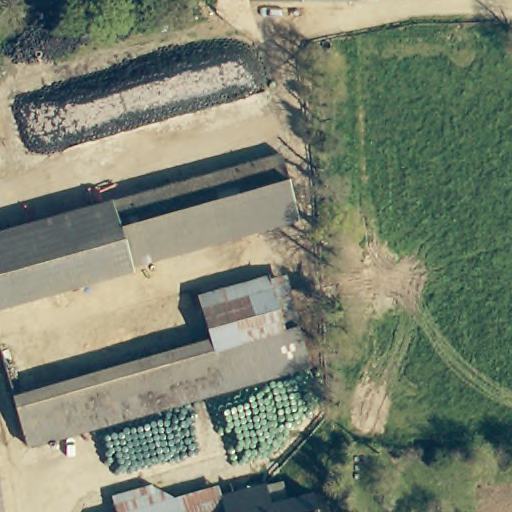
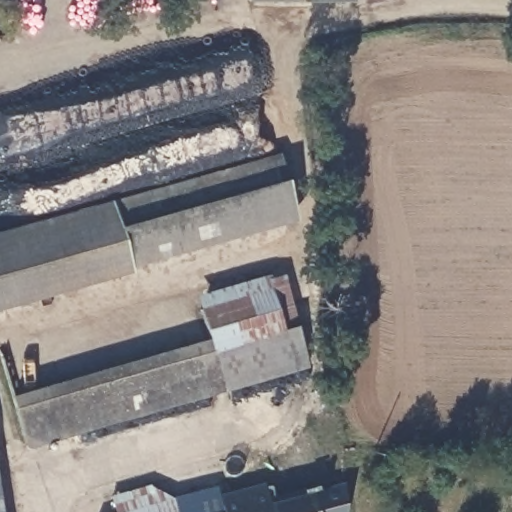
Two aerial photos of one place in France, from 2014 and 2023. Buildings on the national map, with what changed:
unchanged [(131,268),(0,308),(0,228),(279,154),(296,221),(131,268)]
unchanged [(198,299),(285,273),(308,356),(223,380),(211,341),(198,299)]
unchanged [(26,438),(15,398),(211,341),(223,380),(26,438)]
unchanged [(285,485),(290,505),(315,497),(333,492),(337,512),(240,512),(236,496),(268,489),(285,485)]
unchanged [(236,496),(240,512),(150,512),(234,488),(236,496)]

